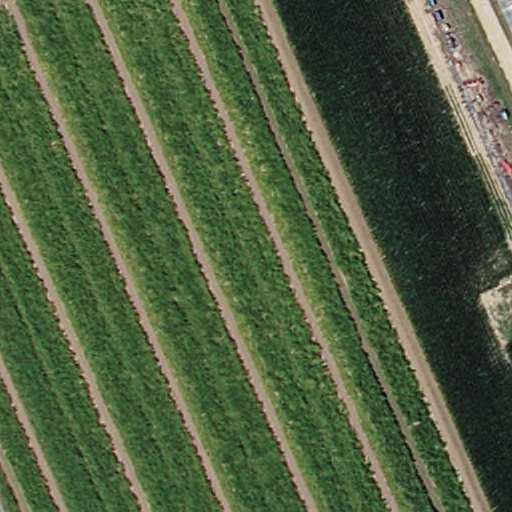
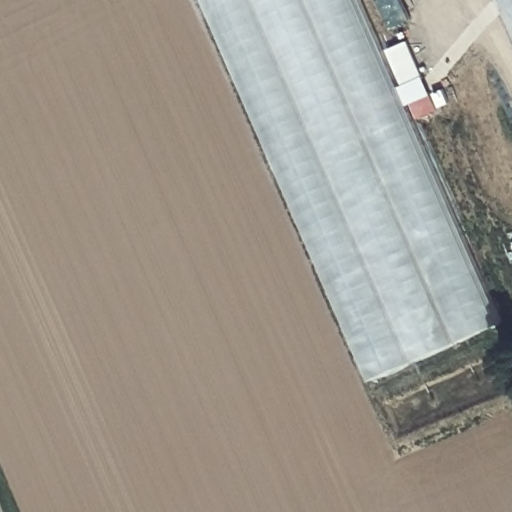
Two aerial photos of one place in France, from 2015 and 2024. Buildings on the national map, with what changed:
new [(366,383),(204,0),(363,0),(496,331),(366,383)]
new [(499,0),(512,0),(512,27),(499,0)]

